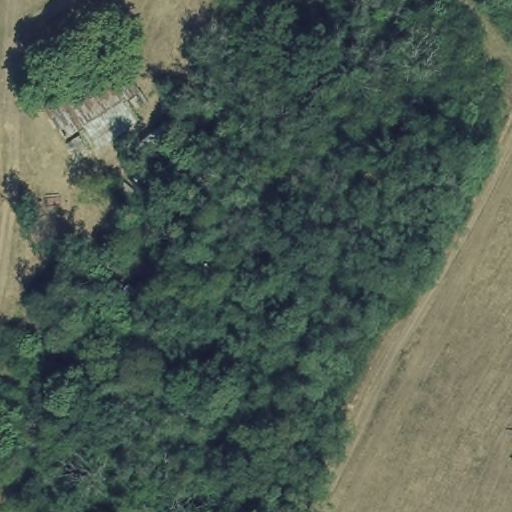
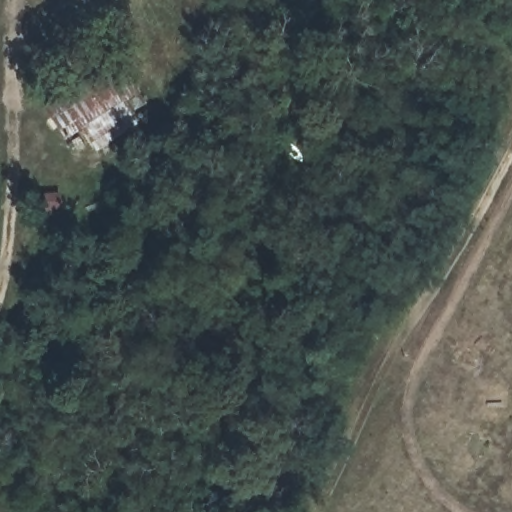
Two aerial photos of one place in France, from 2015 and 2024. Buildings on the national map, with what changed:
unchanged [(88,155),(73,134),(55,151),(34,116),(121,66),(147,115),(88,155)]

